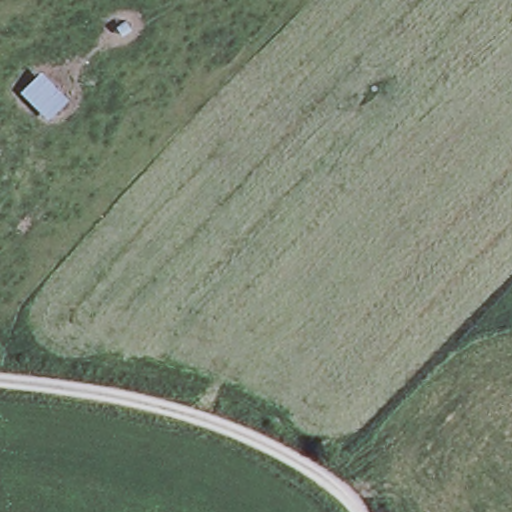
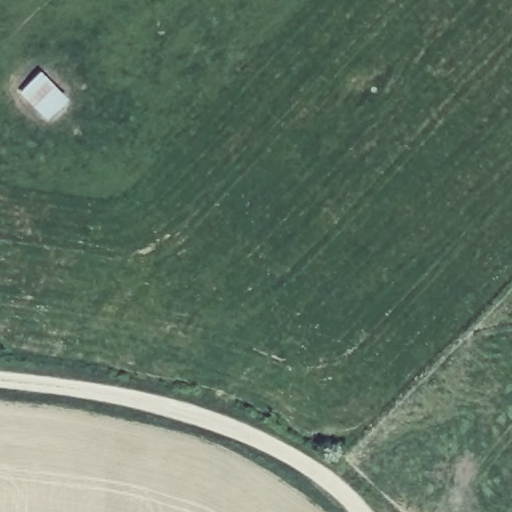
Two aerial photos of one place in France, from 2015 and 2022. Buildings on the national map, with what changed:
unchanged [(49,122),(20,95),(41,72),(72,101),(49,122)]

